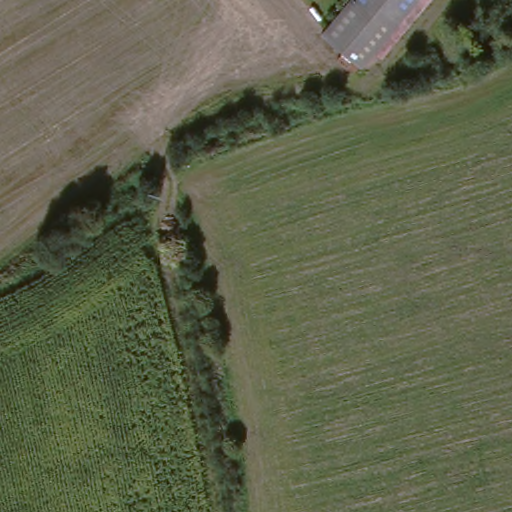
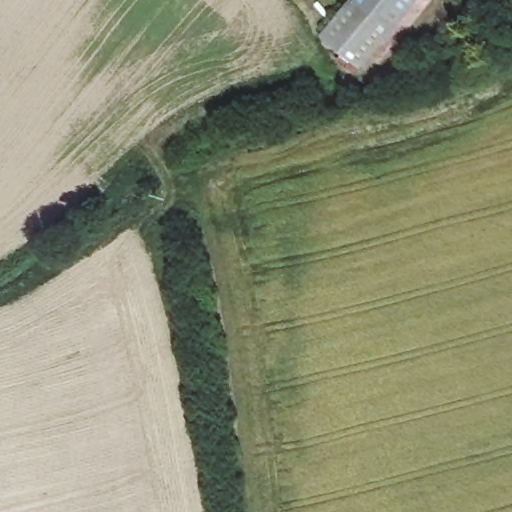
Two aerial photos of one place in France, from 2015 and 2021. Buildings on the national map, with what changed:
unchanged [(408,0),(421,16),(353,75),(313,34),(351,0),(408,0)]

